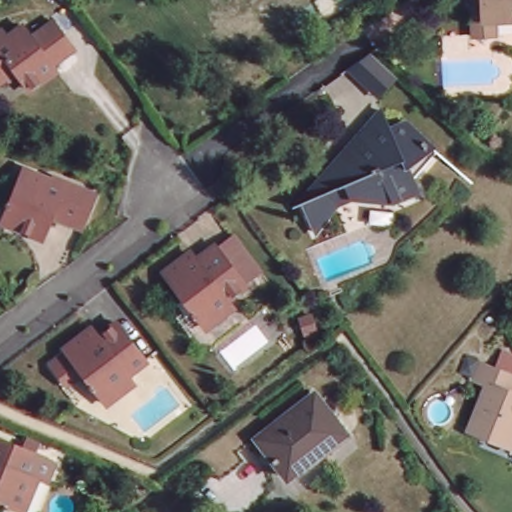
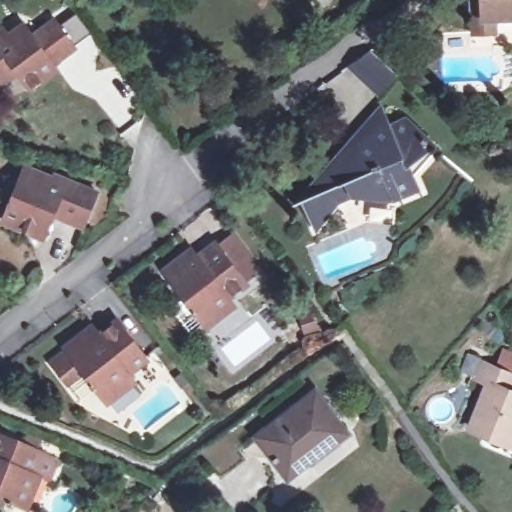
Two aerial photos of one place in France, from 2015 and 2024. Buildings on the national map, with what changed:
unchanged [(499,37),(498,27),(473,29),(472,0),(512,0),(512,37),(499,37)]
unchanged [(5,88),(0,80),(0,45),(5,42),(15,34),(20,42),(37,29),(42,35),(64,20),(86,48),(63,65),(68,70),(41,90),(32,77),(23,85),(18,78),(5,88)]
unchanged [(393,70),(374,89),(351,70),(370,50),(393,70)]
unchanged [(410,119),(441,146),(417,172),(423,185),(399,196),(357,196),(344,202),(319,229),(305,199),(336,164),(356,142),(364,132),(388,107),(394,119),(396,125),(410,119)]
unchanged [(51,217),(43,236),(4,220),(24,171),(48,180),(50,175),(66,182),(94,194),(83,221),(79,229),(51,217)]
unchanged [(224,253),(242,241),(266,272),(249,286),(250,287),(232,302),(238,310),(211,330),(170,277),(198,256),(203,264),(211,259),(222,250),(224,253)]
unchanged [(156,368),(138,382),(143,390),(116,411),(93,381),(78,392),(61,371),(76,360),(75,357),(103,336),(109,343),(115,339),(128,330),(156,368)]
unchanged [(474,428),(492,383),(479,378),(486,362),(512,373),(512,444),(474,428)]
unchanged [(355,431),(315,462),(314,468),(309,472),(304,476),(298,476),(295,473),(288,472),(284,467),(285,460),(266,437),(248,450),(256,460),(231,480),(210,452),(223,442),(269,406),(283,423),(324,391),(355,431)]
unchanged [(33,437),(28,451),(33,452),(23,474),(32,478),(19,509),(0,501),(0,435),(4,425),(33,437)]

